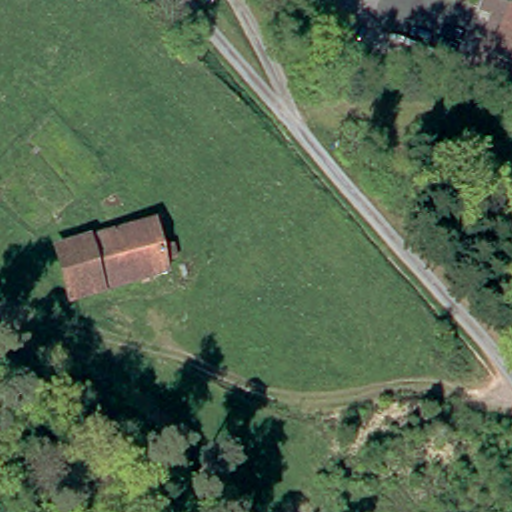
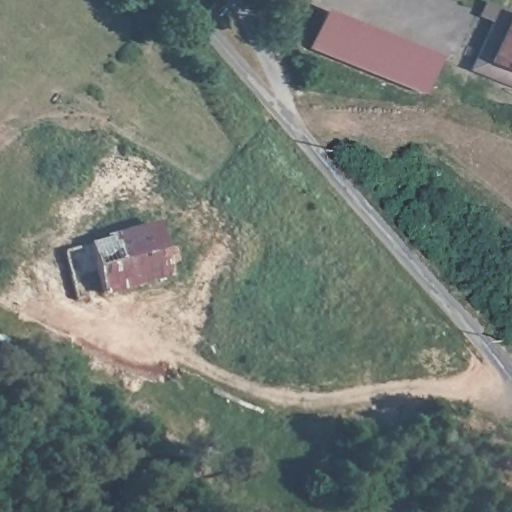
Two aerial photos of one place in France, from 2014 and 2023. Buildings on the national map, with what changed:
unchanged [(472,62),(495,14),(482,8),(486,0),(499,0),(501,1),(512,6),(512,79),(502,74),(497,73),(472,62)]
new [(442,54),(426,96),(310,49),(327,8),(442,54)]
unchanged [(88,238),(153,225),(157,249),(170,248),(172,254),(174,264),(162,265),(163,277),(98,289),(87,238),(88,238)]
unchanged [(72,293),(65,259),(62,243),(87,238),(98,289),(72,293)]

